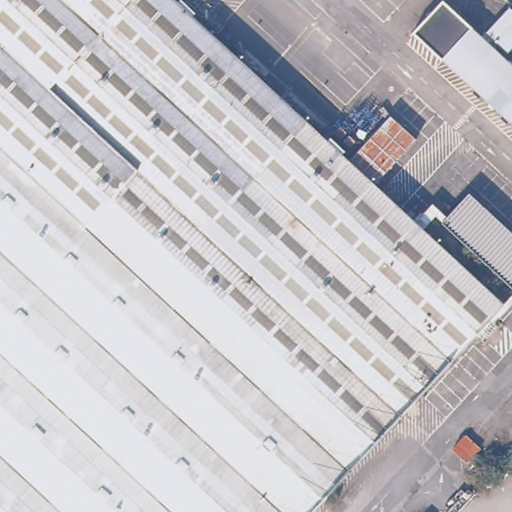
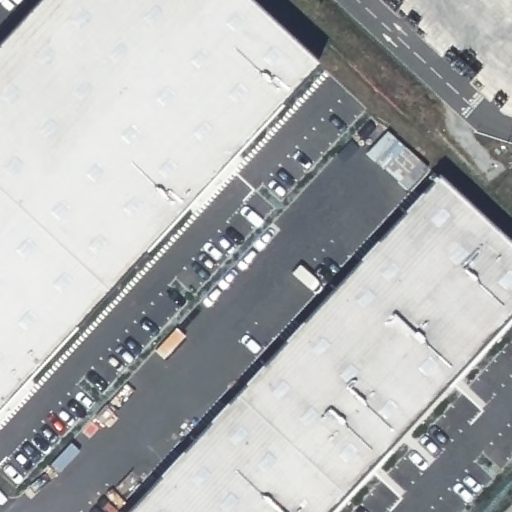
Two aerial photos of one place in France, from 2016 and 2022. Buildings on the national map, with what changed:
new [(248,0),(319,65),(0,408),(0,42),(39,0),(248,0)]
demolished [(437,202),(455,217),(474,195),(512,230),(512,283),(440,218),(428,230),(508,304),(512,299),(512,311),(498,326),(501,329),(488,343),(480,335),(317,512),(0,512),(0,0),(179,0),(418,222),(437,202)]
demolished [(334,134),(189,0),(303,0),(386,77),(334,134)]
demolished [(512,126),(412,32),(441,0),(512,66),(512,126)]
new [(439,175),(512,245),(512,323),(451,392),(444,384),(386,447),(392,452),(338,512),(126,512),(439,175)]

